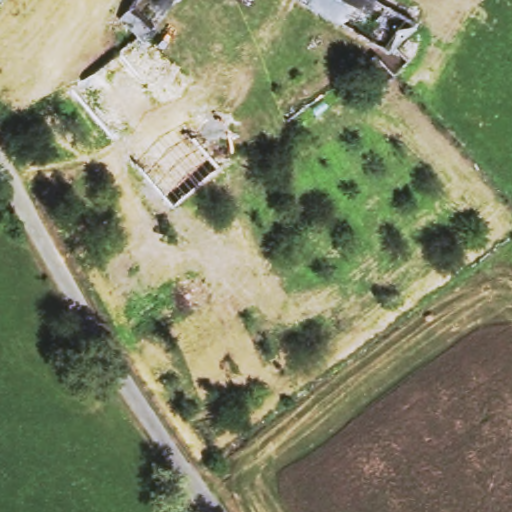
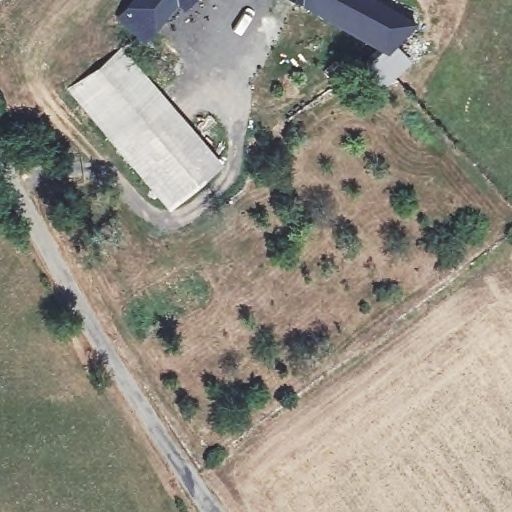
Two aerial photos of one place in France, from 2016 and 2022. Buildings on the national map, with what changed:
new [(144,41),(117,19),(132,0),(177,0),(144,41)]
demolished [(144,40),(124,17),(136,0),(176,0),(144,40)]
new [(185,6),(177,0),(190,0),(185,6)]
new [(367,57),(377,46),(294,0),(377,0),(417,21),(395,45),(411,60),(388,82),(367,57)]
demolished [(422,21),(387,49),(298,0),(383,0),(422,21)]
new [(67,90),(122,46),(223,164),(167,207),(67,90)]

